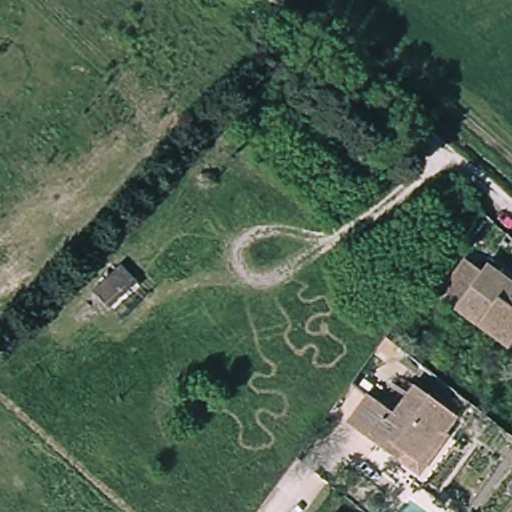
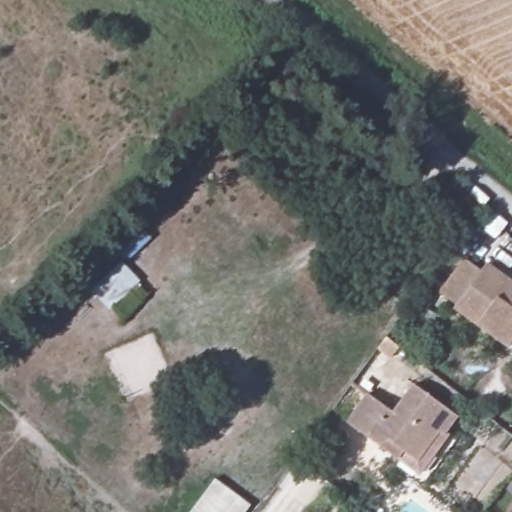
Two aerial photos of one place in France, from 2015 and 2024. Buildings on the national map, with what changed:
unchanged [(512,310),(512,335),(506,343),(452,305),(457,299),(439,286),(462,255),(480,267),(484,261),(512,282),(512,306),(510,309),(512,310)]
unchanged [(348,417),(367,390),(394,410),(413,382),(455,410),(442,429),(435,425),(416,453),(392,437),(387,445),(348,417)]
unchanged [(392,437),(416,453),(435,425),(442,429),(452,436),(420,482),(380,455),(387,445),(392,437)]
new [(251,504),(245,512),(189,512),(215,478),(251,504)]
unchanged [(512,507),(512,512),(508,512),(512,507)]

